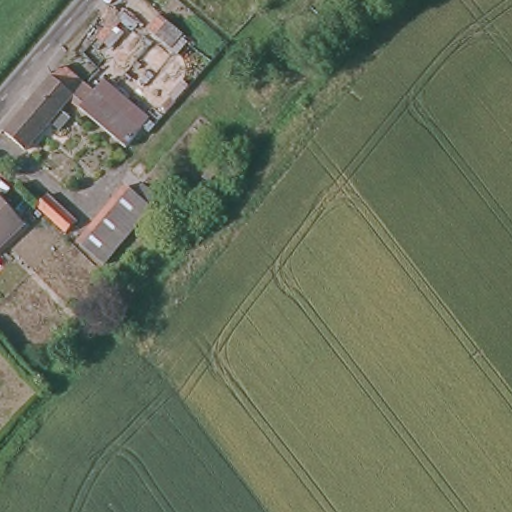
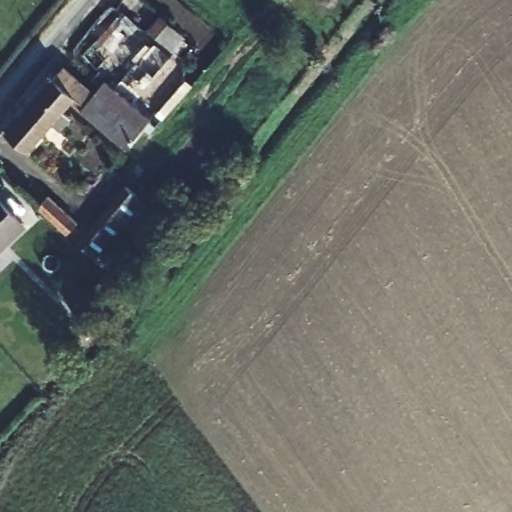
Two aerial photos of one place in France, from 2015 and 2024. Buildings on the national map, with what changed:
unchanged [(189,43),(179,55),(149,30),(159,18),(189,43)]
unchanged [(90,94),(100,81),(145,119),(121,148),(64,100),(55,110),(65,119),(55,131),(45,123),(20,151),(0,134),(57,67),(90,94)]
unchanged [(125,204),(132,195),(159,217),(151,226),(142,218),(93,276),(67,254),(116,197),(125,204)]
unchanged [(77,223),(66,234),(37,207),(47,196),(77,223)]
unchanged [(0,248),(0,212),(17,231),(0,248)]

